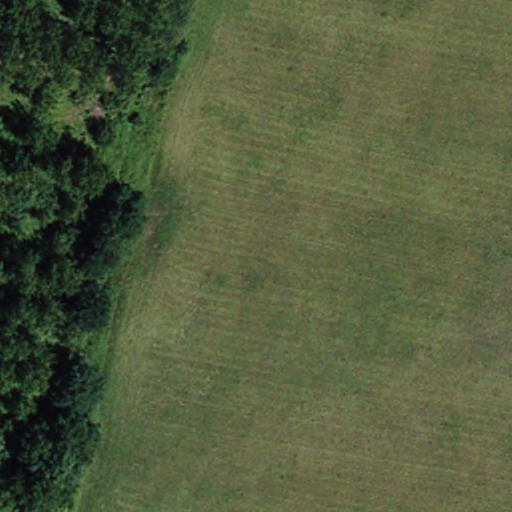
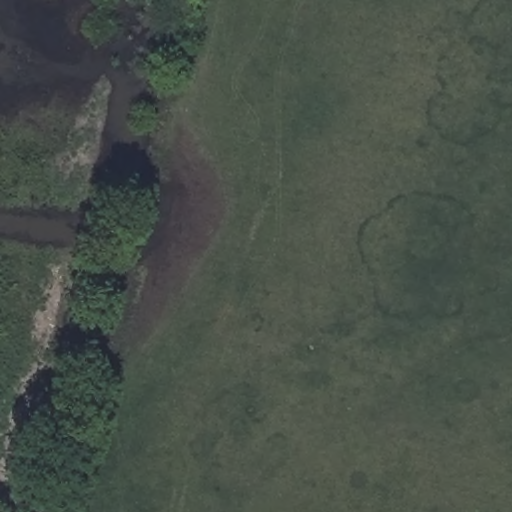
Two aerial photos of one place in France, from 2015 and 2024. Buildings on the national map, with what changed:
[]

